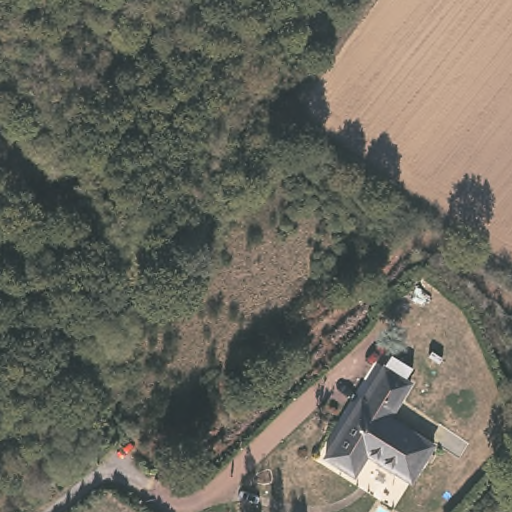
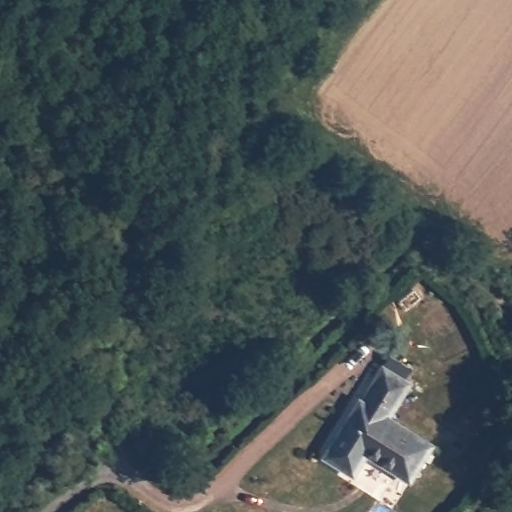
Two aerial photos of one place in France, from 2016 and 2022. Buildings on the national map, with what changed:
unchanged [(412,377),(390,411),(431,436),(409,472),(368,446),(354,469),(325,452),(351,413),(354,411),(387,360),(412,377)]

